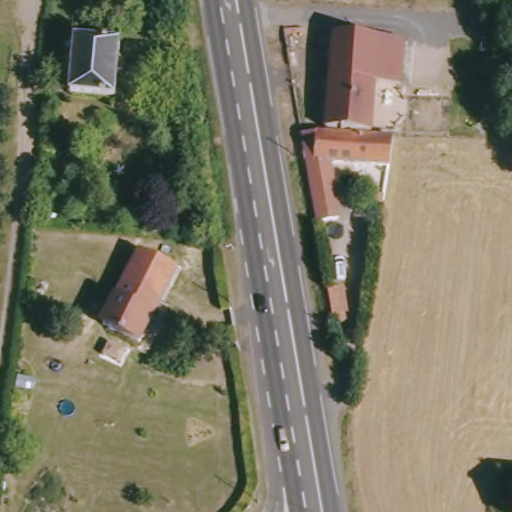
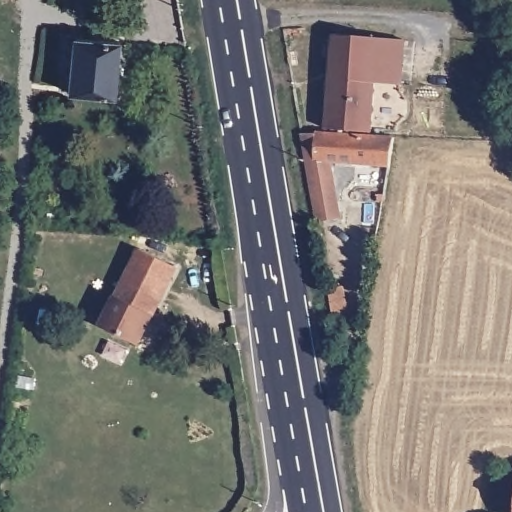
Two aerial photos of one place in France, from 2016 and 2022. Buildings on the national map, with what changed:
unchanged [(395,79),(369,78),(366,127),(322,124),(328,30),(399,35),(395,79)]
unchanged [(113,38),(108,91),(66,87),(71,35),(113,38)]
unchanged [(385,161),(326,157),(309,156),(311,128),(311,127),(389,132),(385,161)]
unchanged [(297,131),(311,128),(309,156),(326,157),(334,216),(312,220),(299,147),(297,131)]
unchanged [(377,202),(376,219),(349,218),(349,202),(377,202)]
unchanged [(170,258),(132,332),(97,315),(136,239),(171,257),(170,258)]
unchanged [(351,311),(355,336),(337,339),(332,314),(351,311)]

